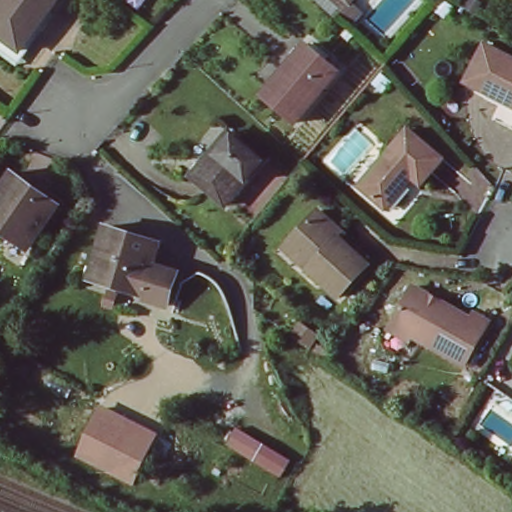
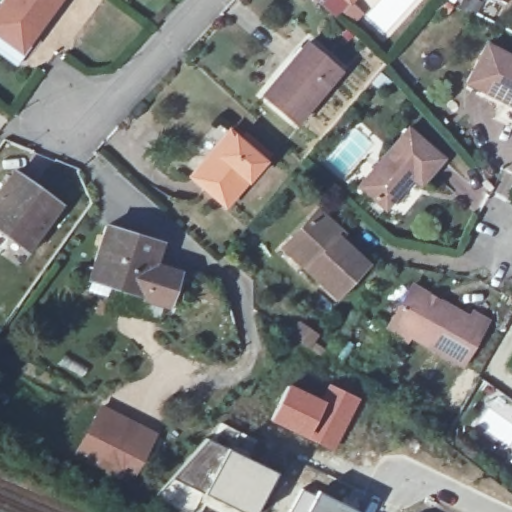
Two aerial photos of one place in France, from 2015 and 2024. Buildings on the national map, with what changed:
unchanged [(0,44),(0,0),(51,0),(50,2),(55,6),(19,57),(0,44)]
unchanged [(350,2),(347,0),(352,0),(350,2)]
unchanged [(466,11),(472,0),(480,5),(475,16),(466,11)]
unchanged [(487,45),(512,59),(512,105),(467,82),(487,45)]
unchanged [(307,46),(339,72),(297,123),(264,95),(307,46)]
unchanged [(408,129),(443,157),(420,186),(413,180),(387,211),(360,190),(408,129)]
unchanged [(193,177),(229,134),(263,162),(226,206),(193,177)]
unchanged [(8,232),(0,226),(0,186),(9,174),(55,206),(25,247),(6,235),(8,232)]
unchanged [(334,297),(303,269),(308,263),(287,244),(318,211),(332,225),(341,234),(337,237),(365,263),(334,297)]
unchanged [(99,224),(162,242),(157,263),(180,272),(170,310),(83,282),(99,224)]
unchanged [(380,335),(382,332),(408,285),(465,318),(469,313),(485,323),(456,372),(403,343),(400,347),(380,335)]
new [(272,420),(289,387),(322,402),(328,386),(357,400),(332,449),(272,420)]
unchanged [(132,486),(74,458),(100,405),(157,435),(132,486)]
new [(170,477),(205,436),(226,447),(274,472),(254,512),(237,512),(203,496),(196,512),(183,512),(155,497),(170,477)]
new [(288,512),(300,487),(314,493),(315,490),(354,512),(288,512)]

